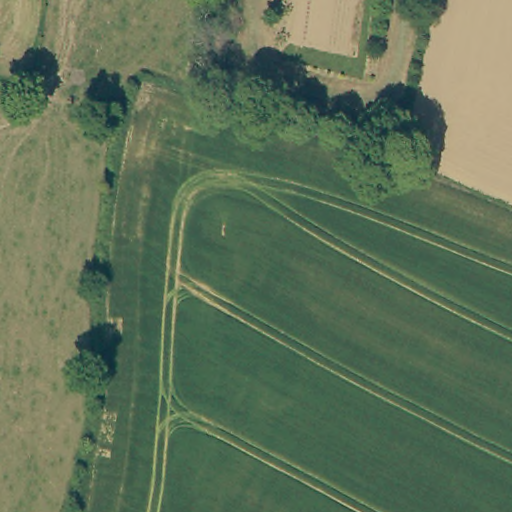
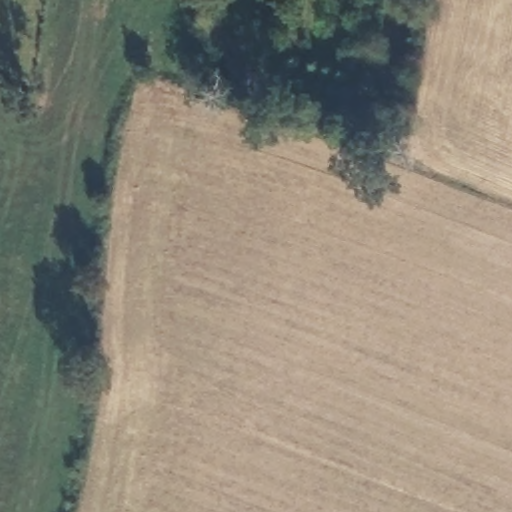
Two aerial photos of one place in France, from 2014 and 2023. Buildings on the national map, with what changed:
[]

